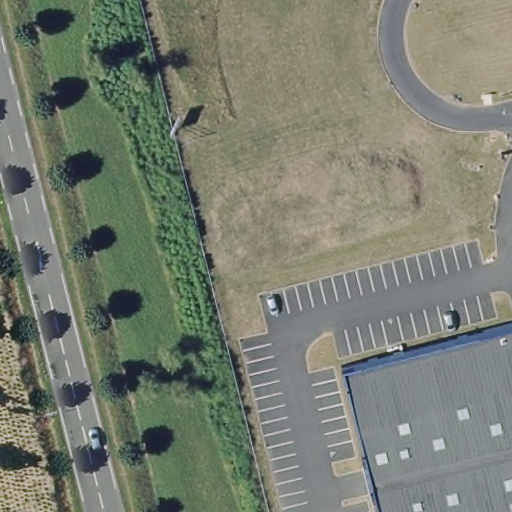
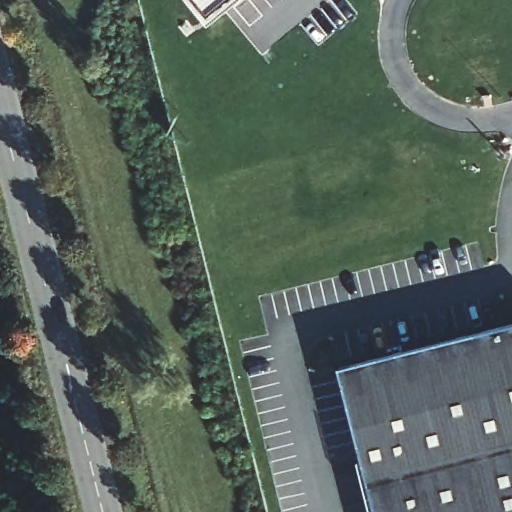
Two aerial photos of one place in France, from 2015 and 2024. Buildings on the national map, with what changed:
new [(182,0),(241,0),(205,29),(182,0)]
unchanged [(512,324),(512,512),(377,512),(341,367),(512,324)]

